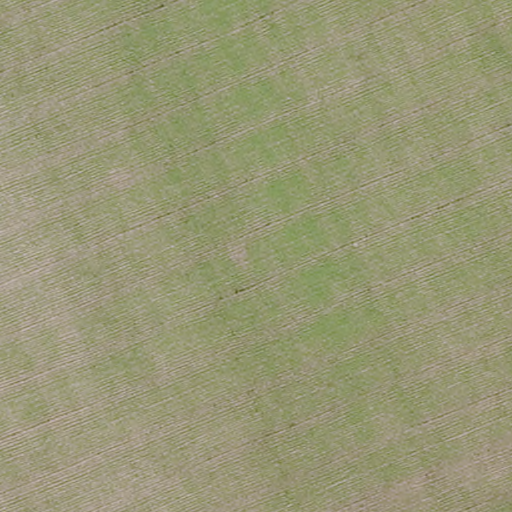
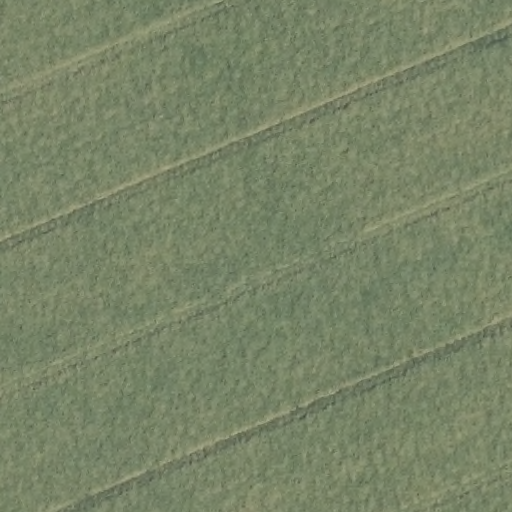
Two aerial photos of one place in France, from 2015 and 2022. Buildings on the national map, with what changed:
[]

